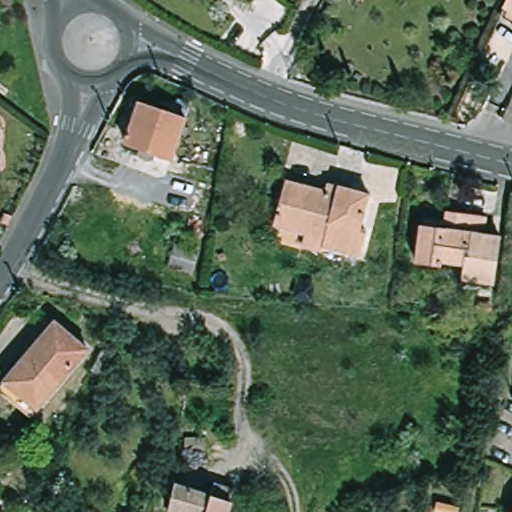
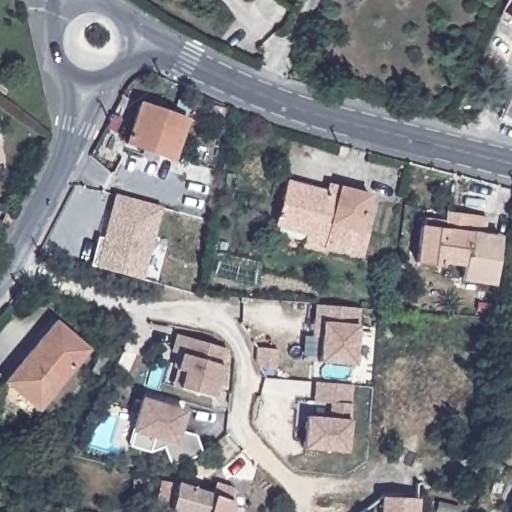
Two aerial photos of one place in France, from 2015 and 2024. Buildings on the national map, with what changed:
unchanged [(500,16),(499,15),(504,7),(507,0),(512,0),(512,24),(500,16)]
unchanged [(512,92),(512,126),(498,119),(512,92)]
unchanged [(124,147),(126,141),(141,99),(186,115),(181,130),(171,156),(143,147),(141,152),(124,147)]
unchanged [(308,247),(312,234),(281,225),(293,182),(332,193),(335,184),(374,195),(364,229),(371,231),(364,256),(330,246),(328,252),(308,247)]
new [(163,206),(143,280),(89,266),(97,236),(103,237),(115,193),(163,206)]
unchanged [(495,284),(463,281),(464,266),(441,263),(440,266),(416,263),(420,227),(424,227),(425,220),(447,222),(448,212),(486,217),(484,236),(500,237),(495,284)]
demolished [(171,266),(176,246),(197,252),(192,272),(171,266)]
new [(318,363),(320,334),(313,333),(315,304),(360,307),(359,324),(355,367),(318,363)]
unchanged [(41,402),(8,375),(15,367),(50,325),(53,322),(85,351),(48,394),(42,402),(41,402)]
new [(173,351),(166,350),(170,333),(218,344),(207,394),(166,384),(173,351)]
unchanged [(103,353),(110,357),(99,377),(93,373),(103,353)]
new [(353,384),(351,419),(346,453),(302,450),(306,415),(328,416),(330,402),(312,401),(315,381),(353,384)]
new [(141,402),(183,412),(179,431),(196,435),(204,453),(173,466),(165,447),(151,453),(130,448),(141,402)]
unchanged [(168,511),(177,485),(210,495),(214,482),(234,488),(230,500),(233,502),(230,512),(173,512),(168,511)]
new [(419,497),(418,512),(380,512),(381,496),(419,497)]

